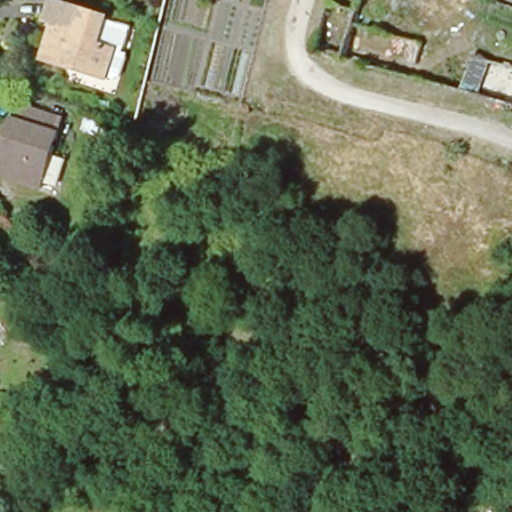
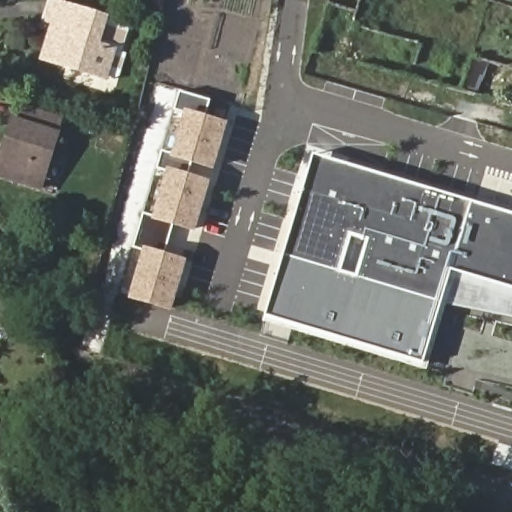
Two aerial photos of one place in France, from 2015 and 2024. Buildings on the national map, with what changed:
unchanged [(125,60),(119,77),(113,80),(107,78),(106,78),(43,61),(51,35),(56,36),(60,26),(46,21),(52,2),(106,19),(105,21),(130,29),(122,54),(125,60)]
new [(463,90),(475,60),(487,65),(475,95),(463,90)]
new [(208,101),(204,115),(228,122),(213,171),(190,165),(188,174),(167,167),(166,170),(160,168),(182,93),(208,101)]
unchanged [(18,145),(30,105),(75,120),(54,189),(18,177),(9,174),(18,145)]
new [(432,366),(275,316),(318,161),(512,218),(512,315),(449,302),(432,366)]
new [(136,245),(144,218),(151,220),(166,170),(167,167),(188,174),(210,180),(195,233),(171,226),(163,253),(187,260),(171,312),(128,299),(143,247),(136,245)]

